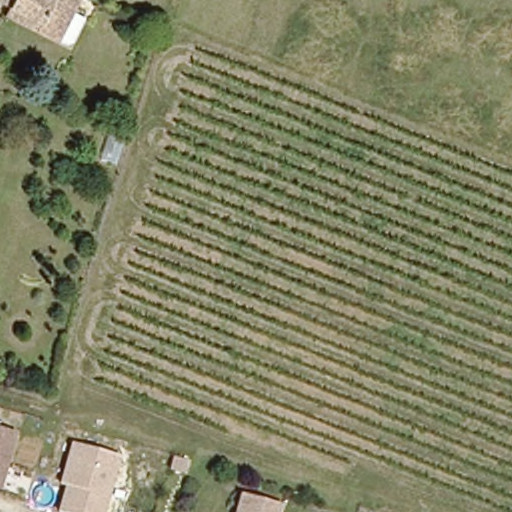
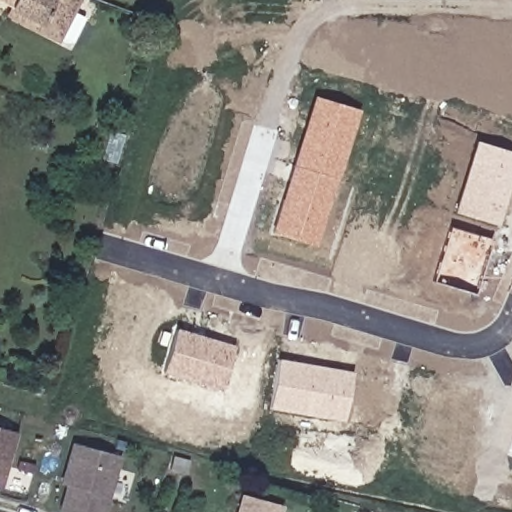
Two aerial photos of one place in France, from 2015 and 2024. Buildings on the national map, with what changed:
unchanged [(64,43),(44,33),(14,19),(18,12),(0,2),(0,0),(85,0),(77,17),(90,24),(76,49),(64,43)]
new [(318,246),(272,232),(315,96),(361,110),(318,246)]
new [(454,210),(474,141),(512,152),(512,179),(498,224),(454,210)]
new [(475,293),(433,281),(450,227),(490,240),(492,240),(475,293)]
new [(163,372),(177,328),(237,346),(223,390),(163,372)]
new [(346,422),(270,409),(278,358),(355,372),(346,422)]
unchanged [(0,486),(0,426),(19,432),(0,486)]
unchanged [(71,442),(123,457),(106,512),(59,512),(66,487),(59,484),(71,442)]
unchanged [(284,505),(282,512),(236,512),(241,495),(284,505)]

